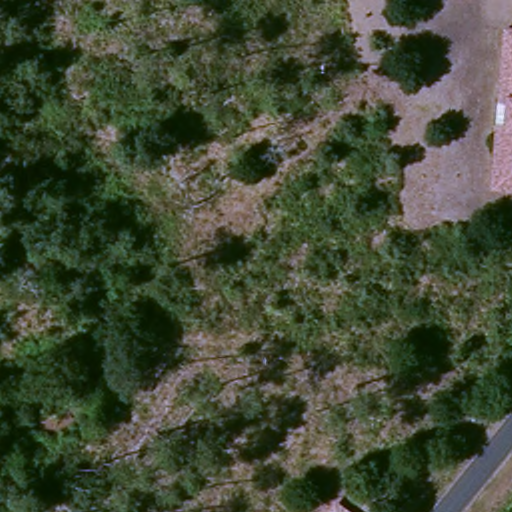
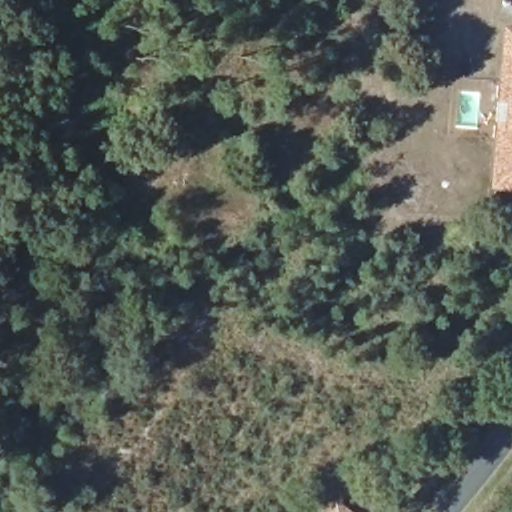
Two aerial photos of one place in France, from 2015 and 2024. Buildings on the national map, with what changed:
unchanged [(507,116),(510,90),(512,65),(512,177),(502,176),(507,116)]
unchanged [(355,512),(322,512),(338,497),(355,512)]

